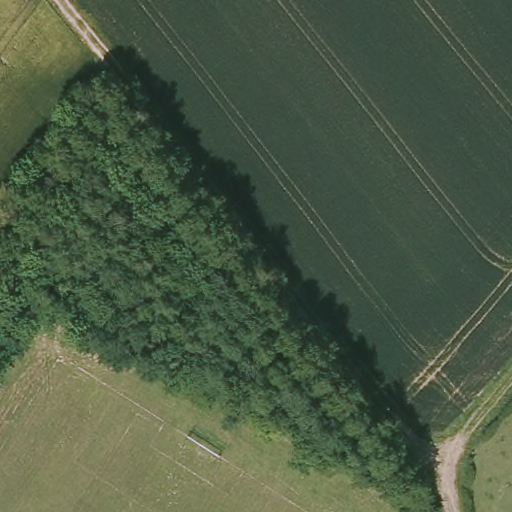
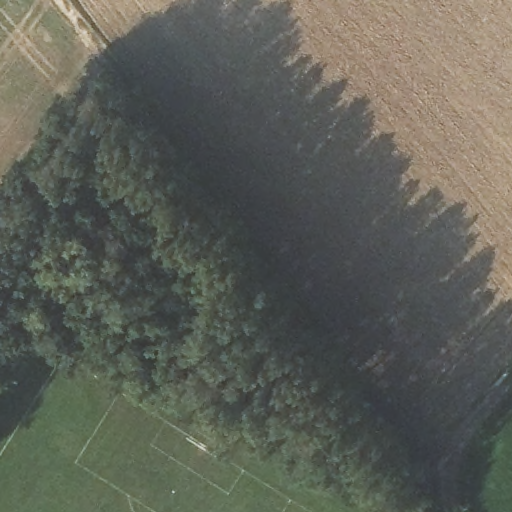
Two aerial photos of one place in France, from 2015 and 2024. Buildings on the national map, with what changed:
[]

